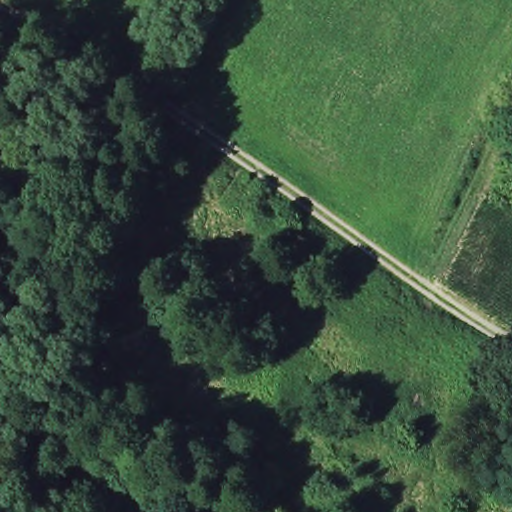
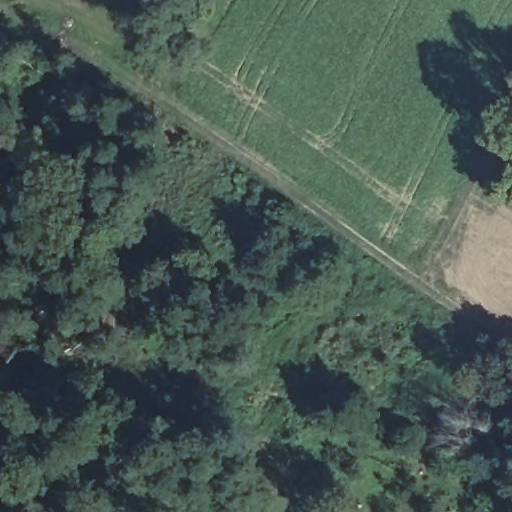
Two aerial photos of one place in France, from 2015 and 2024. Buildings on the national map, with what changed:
unchanged [(57,125),(55,152),(27,147),(30,123),(57,125)]

